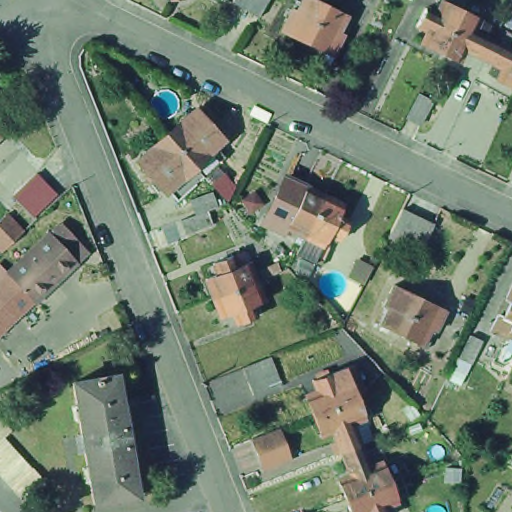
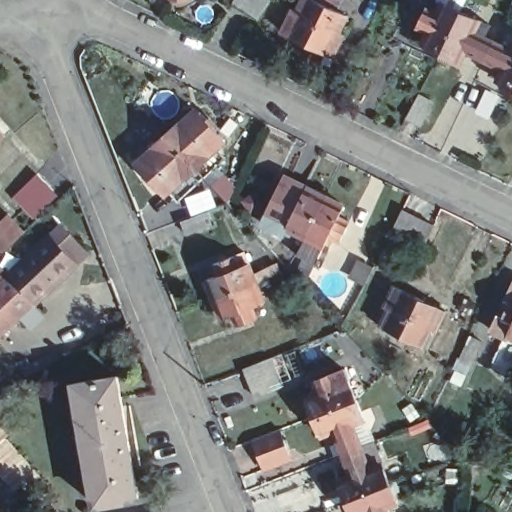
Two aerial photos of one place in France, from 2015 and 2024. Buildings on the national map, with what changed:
unchanged [(254,16),(227,0),(263,0),(254,16)]
unchanged [(303,42),(277,30),(287,8),(294,11),(299,0),(316,0),(323,4),(303,42)]
unchanged [(435,44),(417,36),(423,25),(412,20),(422,2),(432,7),(435,0),(456,0),(453,5),(456,6),(437,45),(435,44)]
unchanged [(343,14),(335,30),(341,33),(330,55),(303,42),(323,4),(343,14)]
unchanged [(485,20),(480,31),(487,34),(478,52),(460,44),(455,54),(437,45),(456,6),(485,20)]
unchanged [(512,82),(493,72),(498,62),(478,52),(487,34),(497,39),(503,28),(512,33),(512,81),(512,82)]
unchanged [(429,99),(417,122),(403,116),(415,92),(429,99)]
unchanged [(153,183),(125,152),(153,126),(183,99),(193,110),(197,107),(202,112),(198,115),(212,130),(203,137),(212,147),(190,165),(163,189),(156,181),(153,183)]
unchanged [(0,148),(0,127),(10,139),(0,148)]
unchanged [(210,182),(202,176),(225,147),(232,152),(210,182)]
unchanged [(6,183),(25,158),(58,195),(37,217),(6,183)]
unchanged [(317,260),(292,248),(301,231),(284,222),(282,229),(260,220),(282,171),(322,190),(340,198),(335,210),(346,215),(337,233),(327,227),(320,240),(327,242),(317,260)]
unchanged [(173,222),(168,209),(182,204),(175,189),(198,180),(203,195),(192,199),(197,212),(173,222)]
unchanged [(383,235),(397,208),(429,223),(415,250),(383,235)]
unchanged [(15,232),(5,241),(0,246),(0,216),(4,220),(15,232)]
unchanged [(76,256),(82,262),(0,338),(0,265),(2,263),(10,273),(63,225),(85,247),(76,256)]
unchanged [(219,273),(215,262),(235,254),(245,250),(250,261),(257,280),(215,297),(208,278),(219,273)]
unchanged [(258,316),(239,324),(235,312),(223,317),(215,297),(257,280),(265,300),(255,305),(258,316)]
unchanged [(506,333),(505,336),(488,328),(512,280),(512,337),(506,333)]
unchanged [(385,305),(395,284),(422,297),(403,336),(382,326),(376,322),(385,305)]
unchanged [(423,346),(403,336),(422,297),(448,310),(438,332),(430,348),(423,346)]
unchanged [(468,361),(455,354),(466,332),(479,339),(468,361)]
unchanged [(250,395),(240,367),(265,356),(277,385),(250,395)]
unchanged [(310,420),(302,400),(313,396),(310,385),(329,377),(340,372),(345,383),(352,403),(310,420)]
unchanged [(74,382),(117,375),(137,496),(95,503),(74,382)]
unchanged [(335,483),(346,480),(337,457),(329,435),(317,440),(310,420),(352,403),(360,422),(364,434),(352,438),(357,450),(368,445),(377,467),(384,487),(343,502),(335,483)]
unchanged [(3,436),(0,439),(0,415),(12,428),(3,436)]
unchanged [(287,458),(260,468),(249,437),(275,427),(287,458)]
unchanged [(0,472),(0,439),(3,436),(32,468),(34,467),(45,480),(24,499),(12,486),(0,472)]
unchanged [(392,507),(380,512),(381,512),(347,512),(343,502),(384,487),(392,507)]

